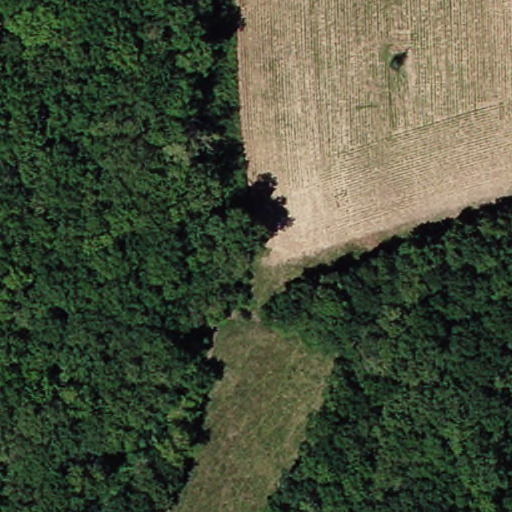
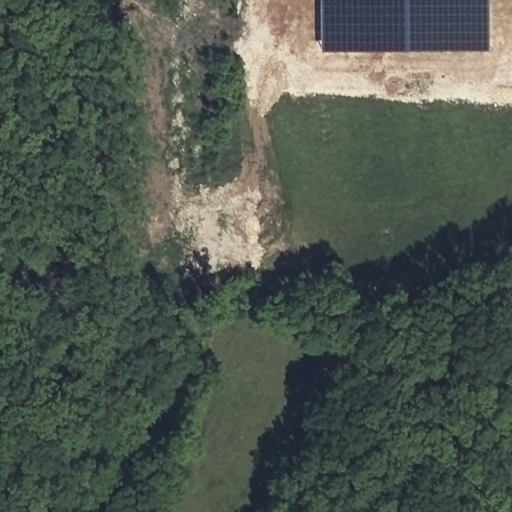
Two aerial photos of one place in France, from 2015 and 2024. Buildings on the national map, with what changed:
new [(320,51),(319,0),(486,0),(486,50),(320,51)]

